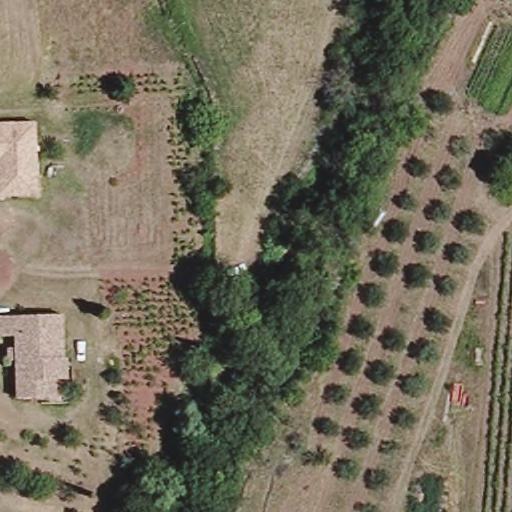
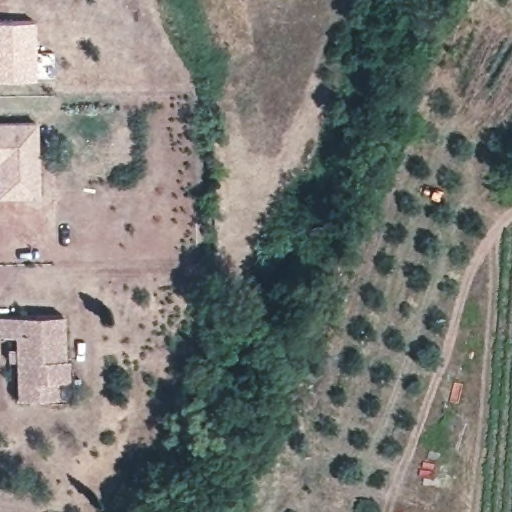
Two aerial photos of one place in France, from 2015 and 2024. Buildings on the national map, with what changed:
new [(36,77),(0,77),(0,19),(34,19),(36,77)]
unchanged [(0,123),(34,120),(36,196),(0,198),(0,123)]
unchanged [(1,331),(0,332),(0,313),(55,309),(58,354),(62,354),(62,370),(47,370),(47,386),(35,387),(16,388),(15,368),(15,355),(2,356),(1,341),(14,341),(14,331),(1,331)]

